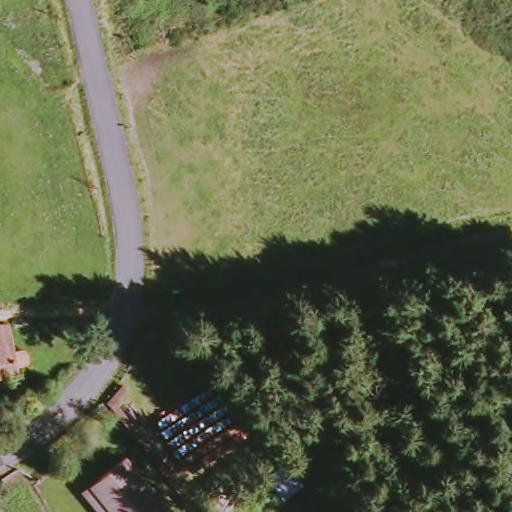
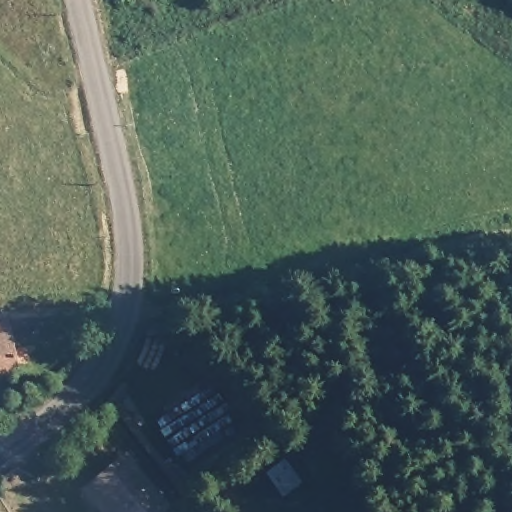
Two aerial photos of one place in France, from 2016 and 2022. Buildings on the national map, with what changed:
unchanged [(9,325),(12,355),(22,356),(23,367),(16,367),(16,374),(0,377),(0,325),(9,325)]
unchanged [(83,490),(126,460),(163,511),(162,512),(99,512),(94,505),(83,490)]

